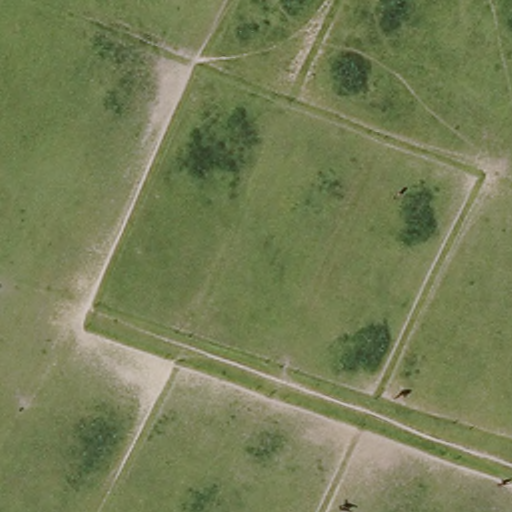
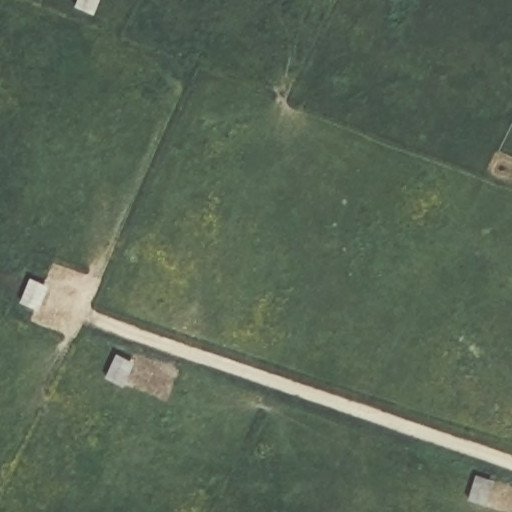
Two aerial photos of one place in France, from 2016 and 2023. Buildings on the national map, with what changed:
[]

